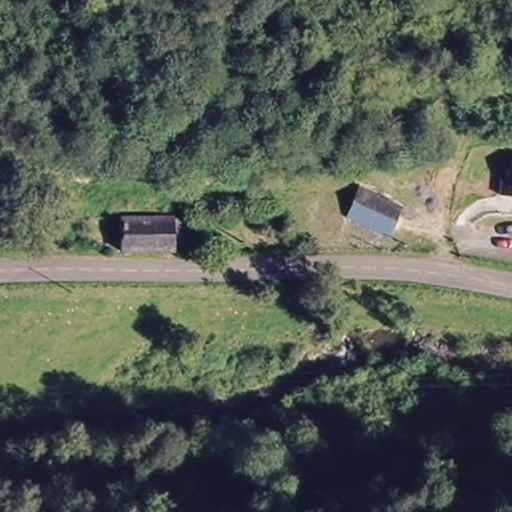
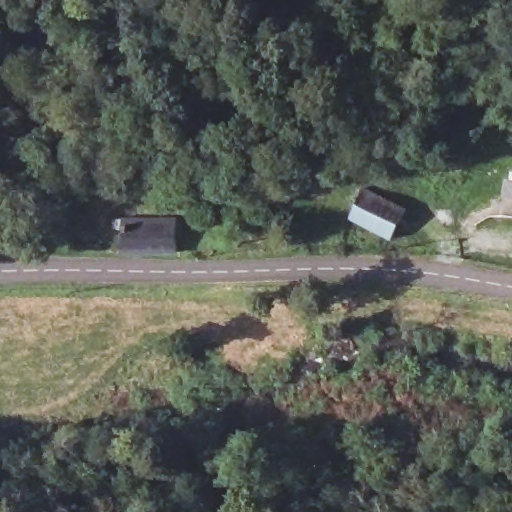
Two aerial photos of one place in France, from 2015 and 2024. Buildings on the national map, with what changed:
unchanged [(505,177),(512,177),(512,191),(506,191),(505,177)]
unchanged [(404,212),(394,239),(352,221),(365,193),(394,205),(404,212)]
unchanged [(181,246),(172,246),(118,246),(118,227),(107,227),(107,215),(171,216),(179,217),(181,246)]

